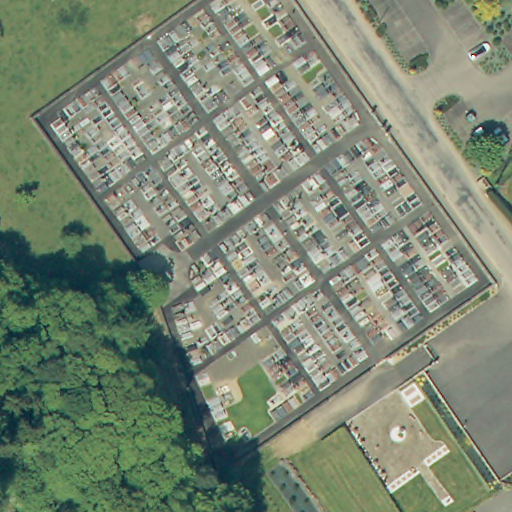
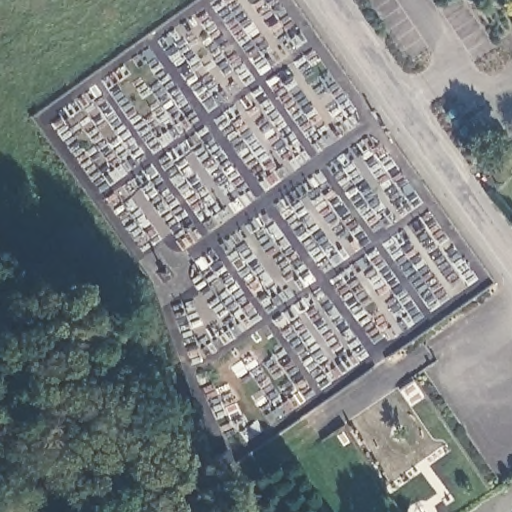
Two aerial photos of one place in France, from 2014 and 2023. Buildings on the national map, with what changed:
unchanged [(211,449),(218,464),(205,472),(199,455),(211,449)]

